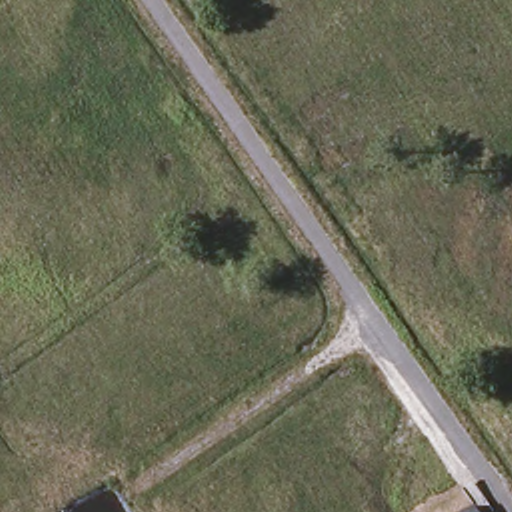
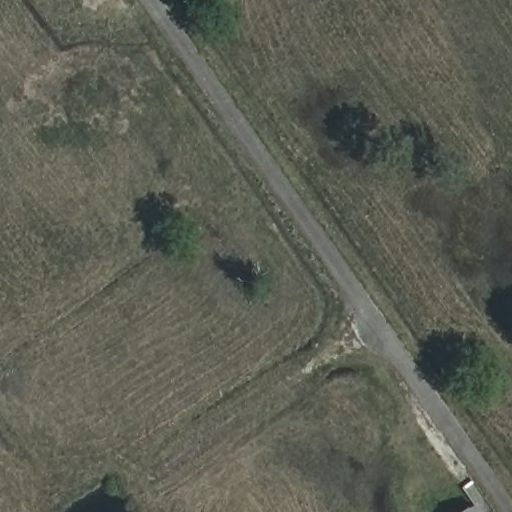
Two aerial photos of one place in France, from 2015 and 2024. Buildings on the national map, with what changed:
unchanged [(478,512),(461,512),(472,503),(478,512)]

